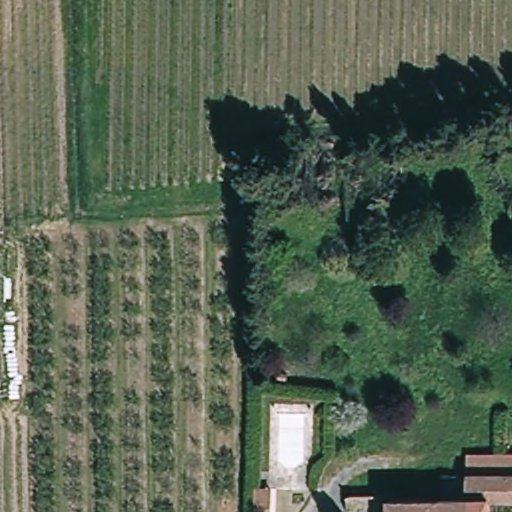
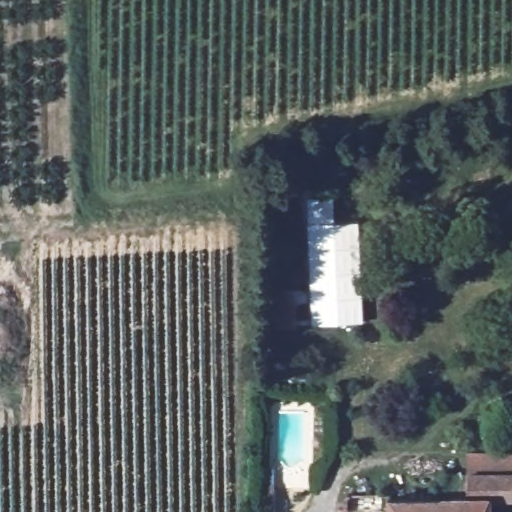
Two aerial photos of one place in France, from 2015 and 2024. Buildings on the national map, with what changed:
new [(309,224),(360,222),(360,322),(313,325),(309,224)]
unchanged [(463,497),(464,491),(470,491),(472,468),(512,469),(512,498),(495,498),(495,512),(394,512),(395,496),(463,497)]
new [(271,487),(270,506),(270,512),(256,512),(256,506),(257,487),(271,487)]

